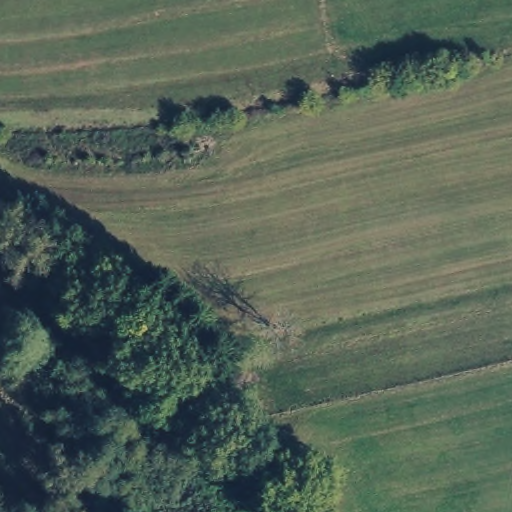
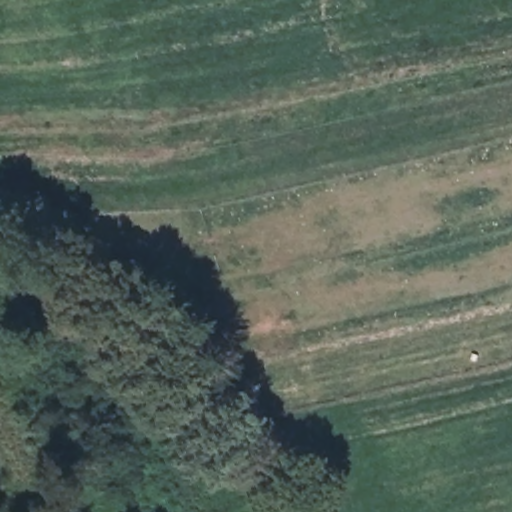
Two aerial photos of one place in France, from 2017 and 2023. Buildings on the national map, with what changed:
[]

